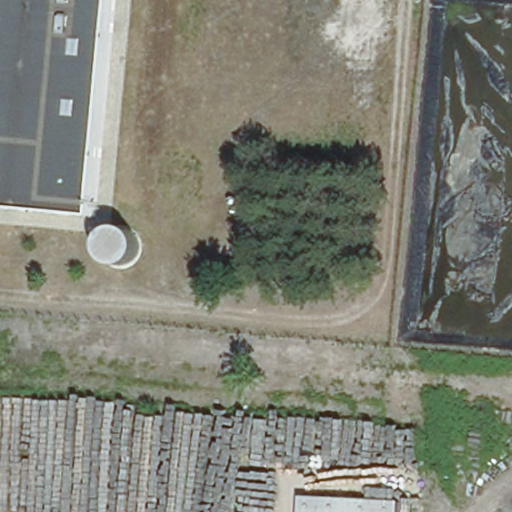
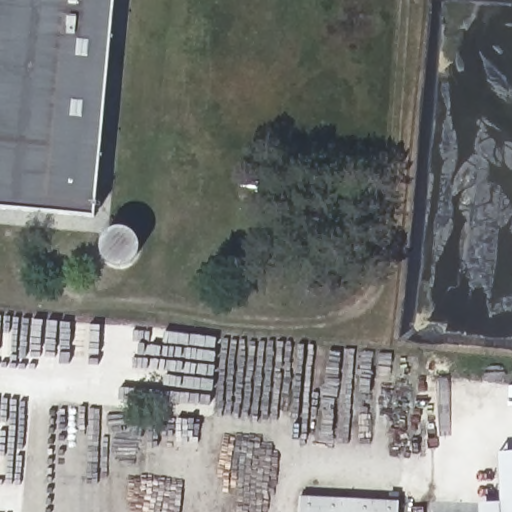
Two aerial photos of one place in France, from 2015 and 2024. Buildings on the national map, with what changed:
unchanged [(0,0),(115,0),(95,217),(0,208),(0,0)]
new [(512,450),(512,512),(481,512),(480,502),(503,501),(500,450),(512,450)]
unchanged [(302,499),(402,503),(402,512),(302,512),(302,499)]

